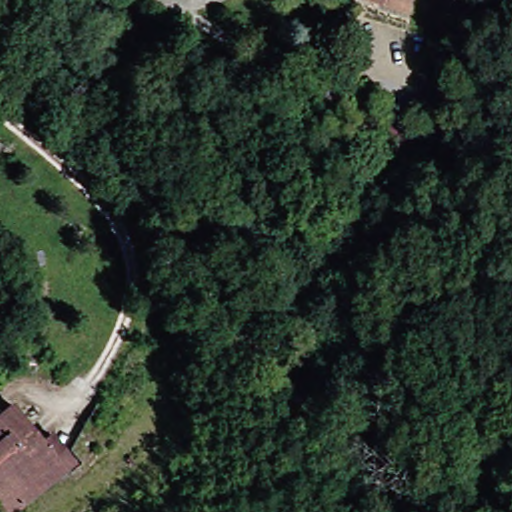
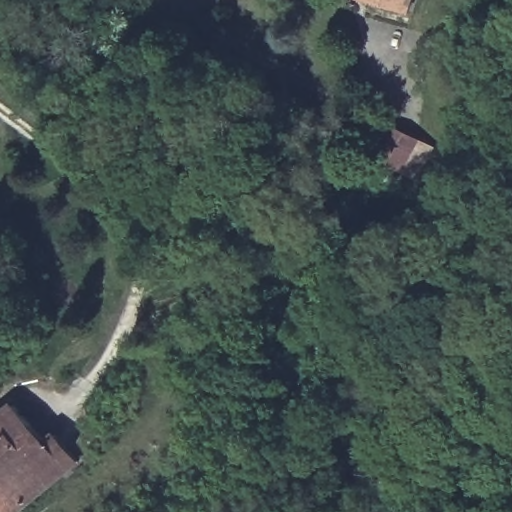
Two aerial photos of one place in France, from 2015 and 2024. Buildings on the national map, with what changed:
unchanged [(405,0),(419,0),(417,4),(405,0)]
new [(418,182),(382,162),(388,150),(380,146),(392,124),(436,148),(418,182)]
unchanged [(10,512),(0,512),(0,414),(5,410),(34,447),(44,439),(57,455),(66,468),(10,512)]

